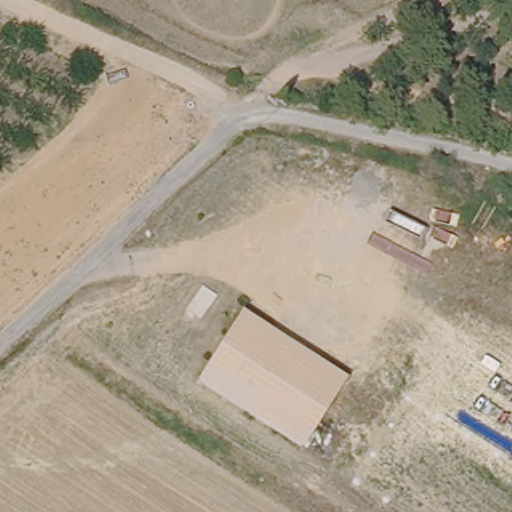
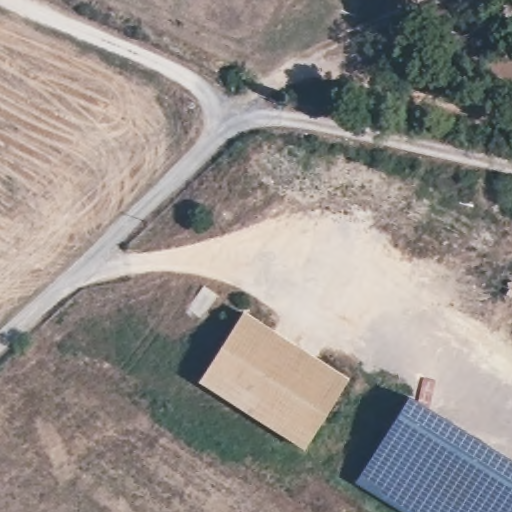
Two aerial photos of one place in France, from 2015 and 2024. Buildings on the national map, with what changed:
unchanged [(303,450),(197,382),(243,309),(350,377),(303,450)]
new [(512,512),(402,512),(353,482),(409,396),(512,459),(512,512)]

